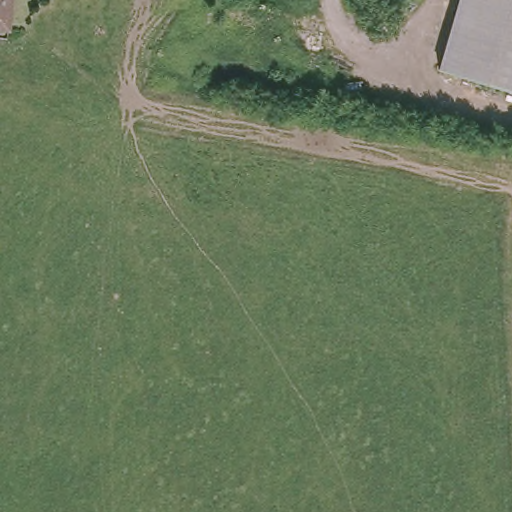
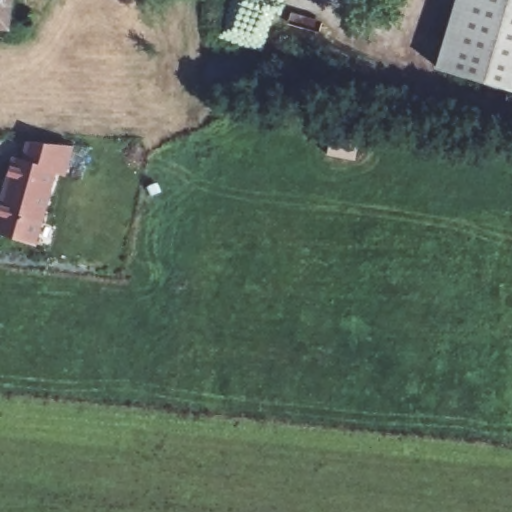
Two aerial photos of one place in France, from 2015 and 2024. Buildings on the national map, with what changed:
unchanged [(13,34),(0,32),(0,0),(16,0),(13,34)]
unchanged [(438,68),(459,0),(512,0),(512,89),(438,68)]
new [(57,173),(38,241),(0,232),(0,218),(15,158),(25,160),(30,140),(73,147),(67,174),(57,173)]

